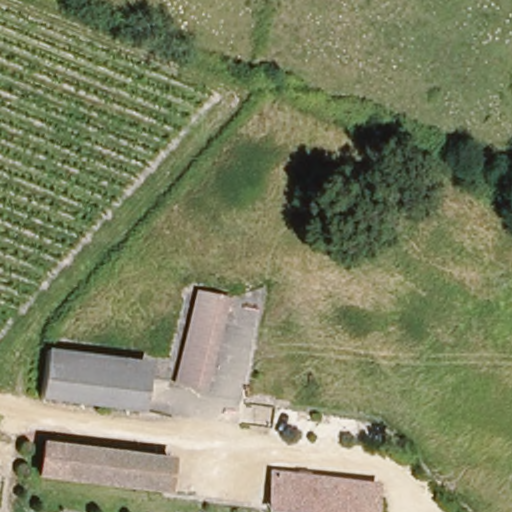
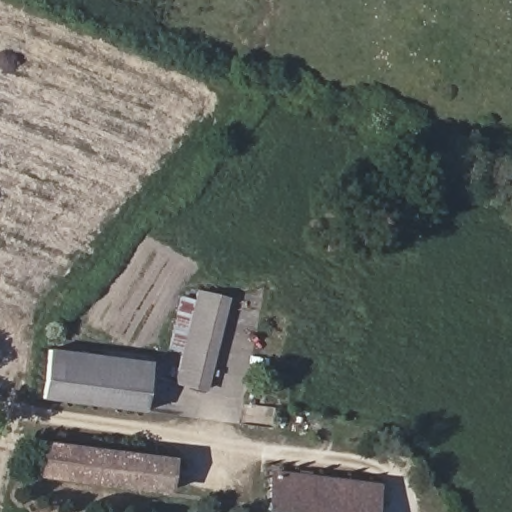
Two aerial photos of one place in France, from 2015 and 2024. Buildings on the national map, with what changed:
unchanged [(208,390),(180,384),(201,291),(230,298),(208,390)]
unchanged [(45,390),(53,343),(151,362),(143,411),(45,390)]
unchanged [(167,492),(126,486),(45,472),(50,442),(170,461),(167,492)]
unchanged [(376,487),(373,512),(276,512),(280,479),(376,487)]

